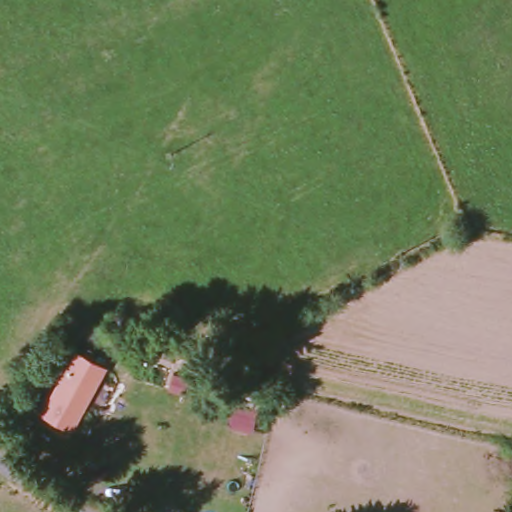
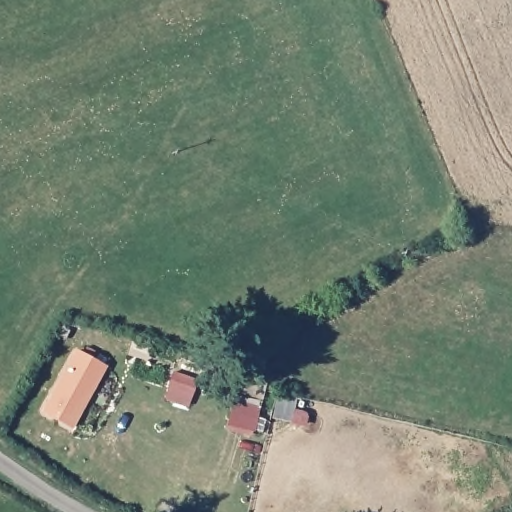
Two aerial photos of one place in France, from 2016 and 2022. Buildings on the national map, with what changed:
unchanged [(78,351),(110,368),(75,432),(44,415),(78,351)]

